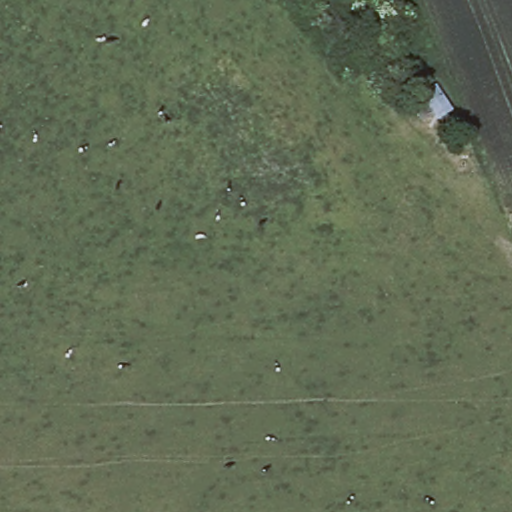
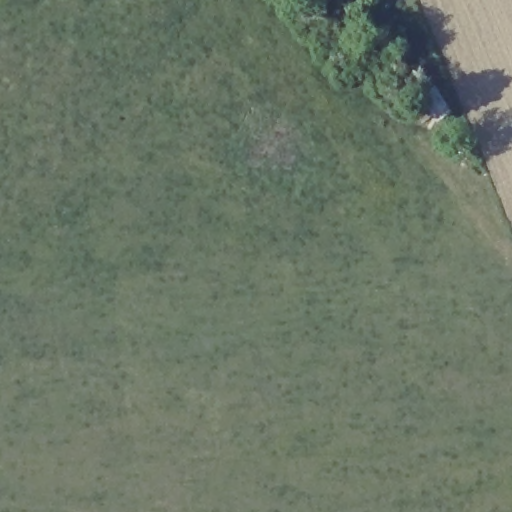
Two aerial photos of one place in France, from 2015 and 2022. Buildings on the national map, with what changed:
unchanged [(457,112),(440,127),(422,98),(437,88),(457,112)]

